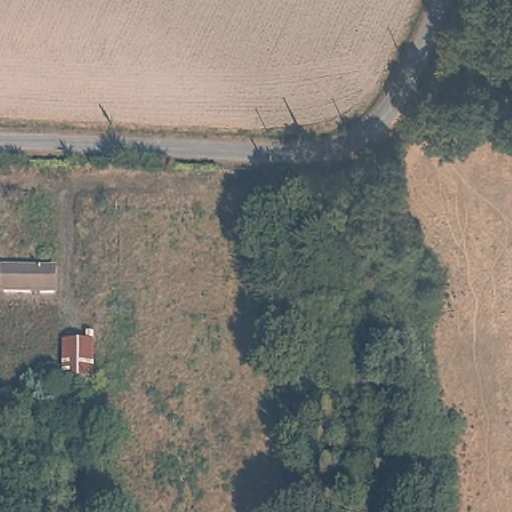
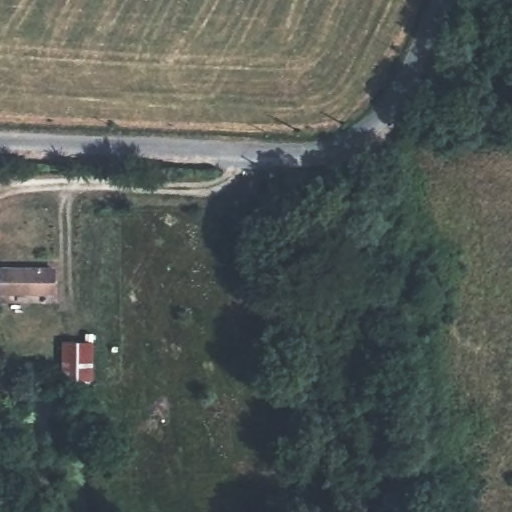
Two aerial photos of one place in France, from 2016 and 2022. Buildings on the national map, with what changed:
unchanged [(0,289),(0,266),(55,267),(52,291),(0,289)]
unchanged [(90,378),(59,377),(59,337),(90,340),(90,378)]
unchanged [(342,352),(366,348),(372,386),(348,389),(342,352)]

